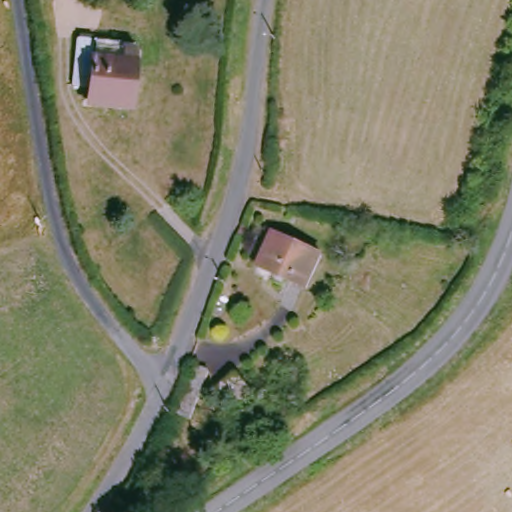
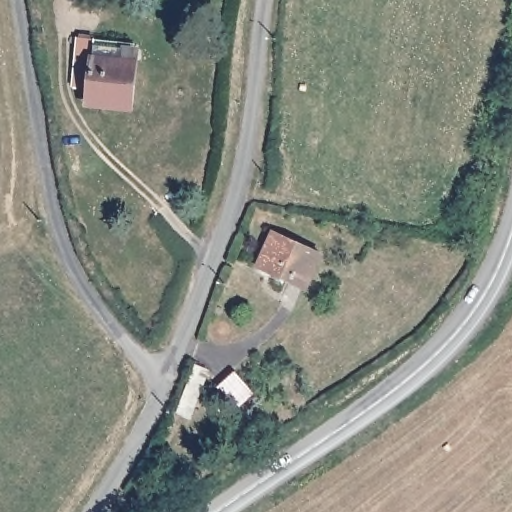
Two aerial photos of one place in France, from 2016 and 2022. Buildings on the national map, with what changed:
unchanged [(143,48),(134,110),(95,106),(95,93),(77,90),(84,41),(143,48)]
unchanged [(323,250),(305,286),(257,263),(274,228),(323,250)]
unchanged [(203,383),(196,399),(182,395),(191,378),(203,383)]

